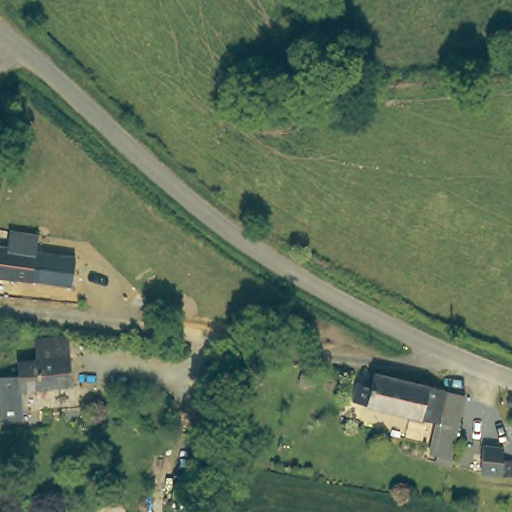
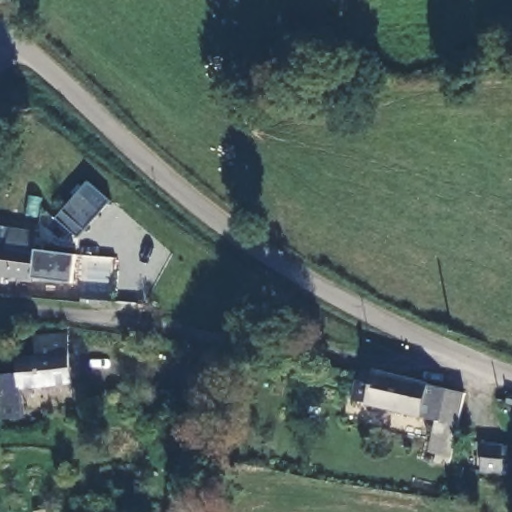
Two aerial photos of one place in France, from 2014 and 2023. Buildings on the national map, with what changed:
new [(55,217),(90,182),(111,202),(78,238),(55,217)]
unchanged [(17,232),(45,236),(43,252),(40,282),(0,277),(0,248),(15,250),(17,232)]
unchanged [(46,242),(81,246),(76,287),(40,282),(43,252),(46,242)]
unchanged [(19,384),(20,407),(21,415),(14,415),(0,415),(0,371),(17,370),(16,356),(35,355),(34,335),(67,332),(70,381),(19,384)]
unchanged [(453,453),(432,447),(438,418),(368,401),(369,388),(359,385),(362,372),(376,375),(376,370),(387,372),(426,380),(464,392),(468,393),(453,453)]
unchanged [(512,454),(512,481),(497,480),(497,453),(512,454)]

